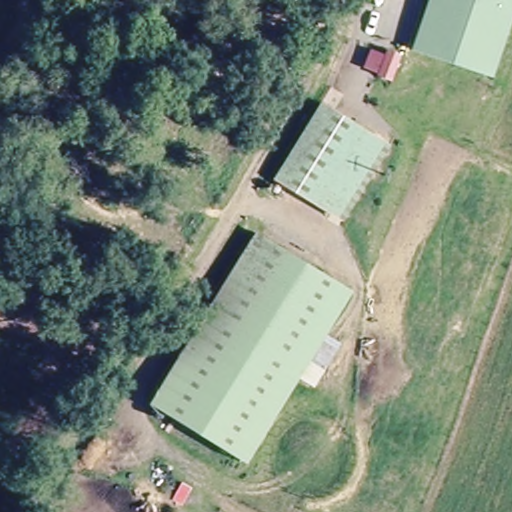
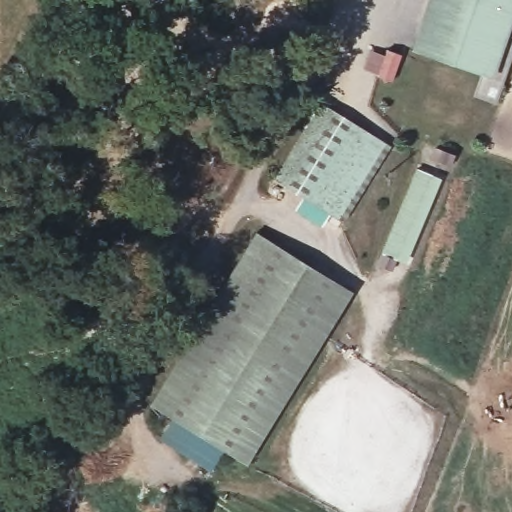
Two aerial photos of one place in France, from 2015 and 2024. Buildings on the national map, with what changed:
unchanged [(508,0),(485,68),(425,48),(441,0),(508,0)]
unchanged [(274,183),(322,106),(378,140),(377,140),(330,218),(274,183)]
unchanged [(377,140),(389,149),(341,225),(330,218),(377,140)]
new [(416,169),(441,179),(405,264),(380,254),(416,169)]
unchanged [(255,237),(350,296),(243,466),(149,406),(255,237)]

